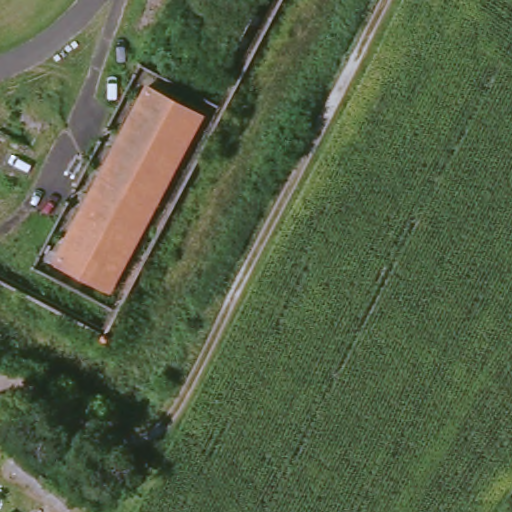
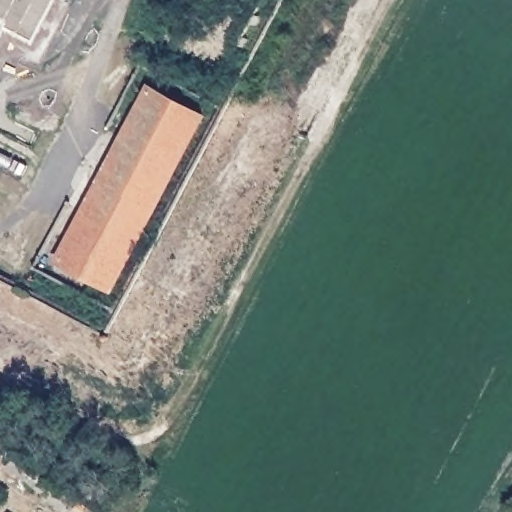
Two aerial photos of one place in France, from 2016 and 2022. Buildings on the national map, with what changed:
unchanged [(200,113),(108,288),(54,260),(145,85),(200,113)]
unchanged [(70,496),(57,510),(10,467),(20,455),(70,496)]

